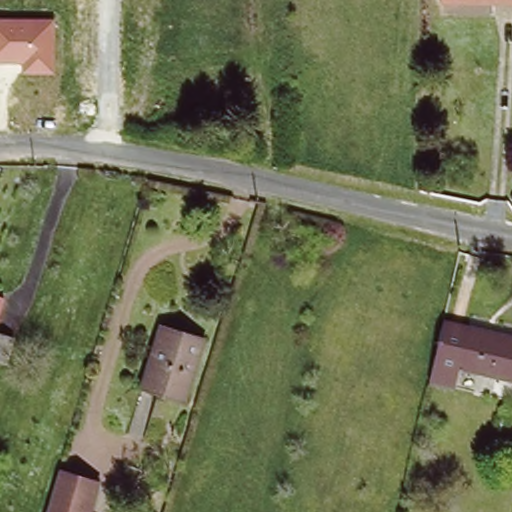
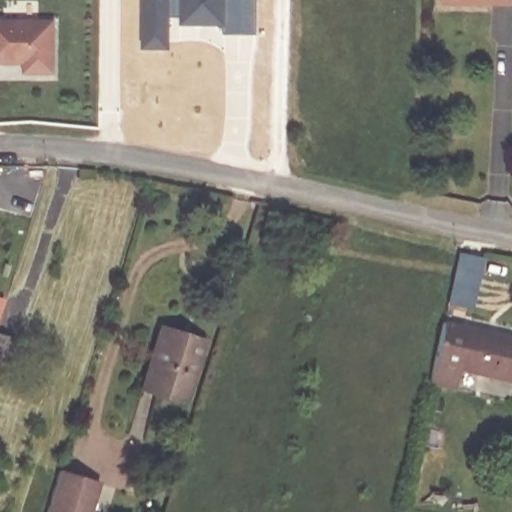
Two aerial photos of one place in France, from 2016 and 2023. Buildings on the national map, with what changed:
new [(260,0),(260,39),(220,38),(219,29),(171,29),(170,51),(140,50),(140,0),(260,0)]
unchanged [(445,2),(445,0),(512,0),(512,3),(445,2)]
unchanged [(0,64),(0,19),(54,20),(54,74),(21,75),(20,64),(0,64)]
unchanged [(512,334),(512,375),(464,366),(460,385),(429,379),(442,320),(512,334)]
unchanged [(145,386),(164,326),(187,333),(204,338),(200,347),(185,397),(145,386)]
unchanged [(0,366),(0,338),(10,342),(0,366)]
unchanged [(104,479),(97,498),(92,512),(49,512),(64,467),(99,477),(104,479)]

